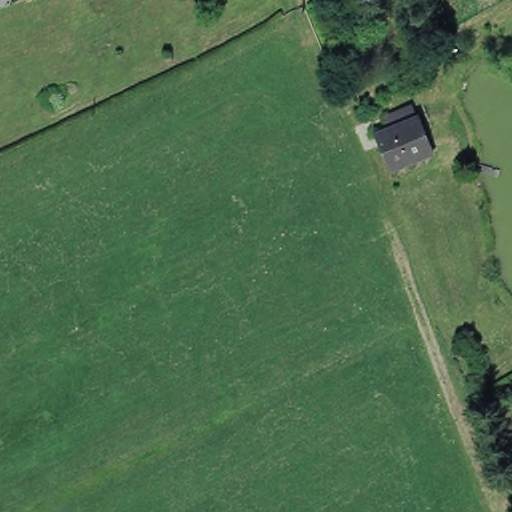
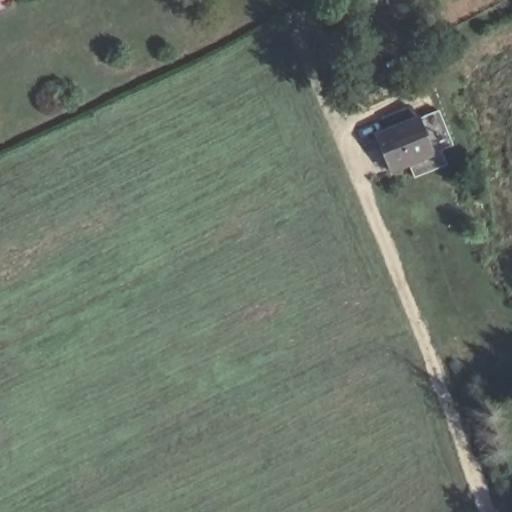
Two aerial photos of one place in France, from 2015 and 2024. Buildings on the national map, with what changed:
unchanged [(386,166),(372,134),(414,116),(428,149),(386,166)]

